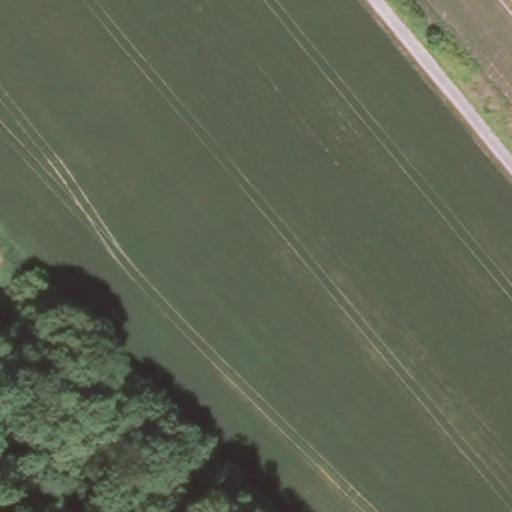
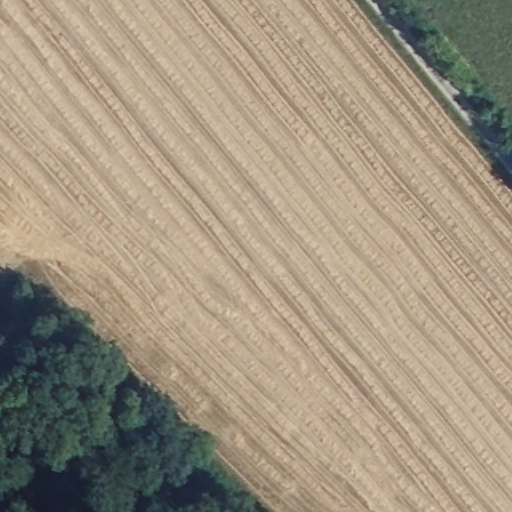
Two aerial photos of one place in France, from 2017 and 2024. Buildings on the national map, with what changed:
unchanged [(115,367),(92,343),(121,313),(149,341),(120,372),(115,367)]

